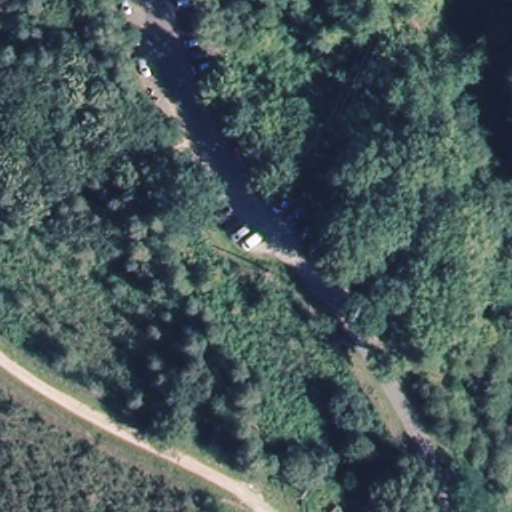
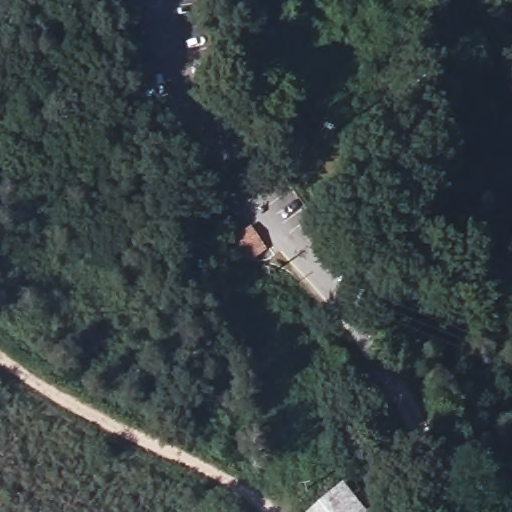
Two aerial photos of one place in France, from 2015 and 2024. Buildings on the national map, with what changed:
unchanged [(261,113),(276,137),(255,150),(240,127),(261,113)]
new [(368,512),(305,512),(343,481),(368,512)]

